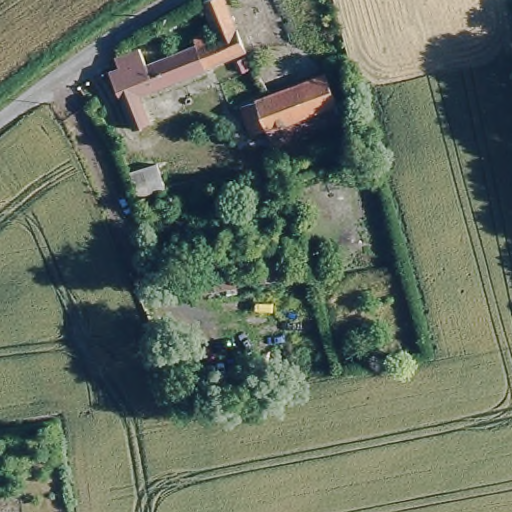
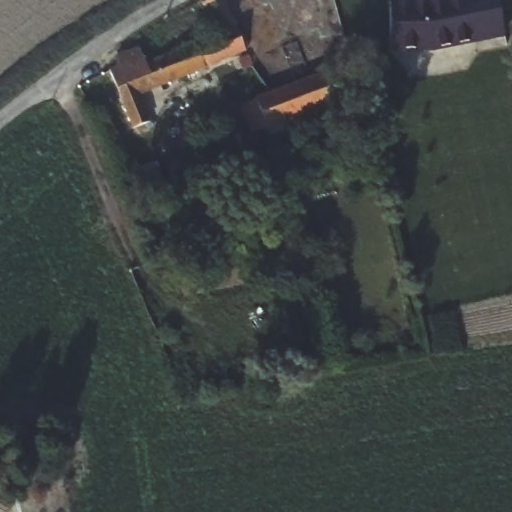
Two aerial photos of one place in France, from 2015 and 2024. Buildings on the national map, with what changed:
unchanged [(140,97),(152,123),(136,127),(106,74),(115,68),(111,57),(132,47),(144,63),(213,35),(198,2),(208,0),(224,0),(248,48),(140,97)]
new [(438,52),(391,52),(391,4),(427,2),(437,0),(498,0),(506,34),(438,52)]
unchanged [(347,70),(355,97),(339,102),(343,118),(273,143),(267,126),(253,131),(244,105),(276,93),(330,76),(347,70)]
demolished [(220,86),(226,102),(216,105),(221,117),(204,124),(199,113),(188,116),(174,116),(171,105),(220,86)]
unchanged [(282,268),(300,267),(300,275),(276,282),(183,297),(175,259),(274,245),(282,268)]

